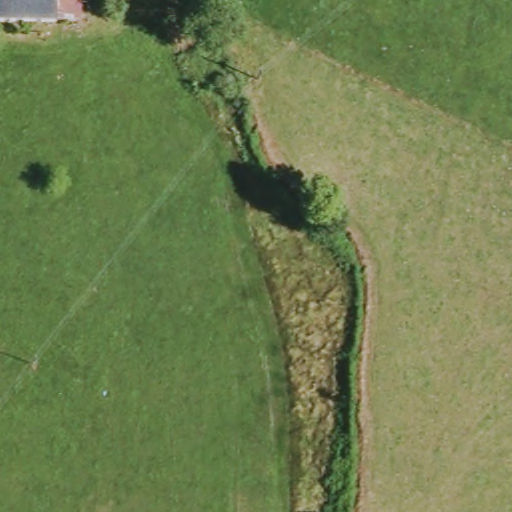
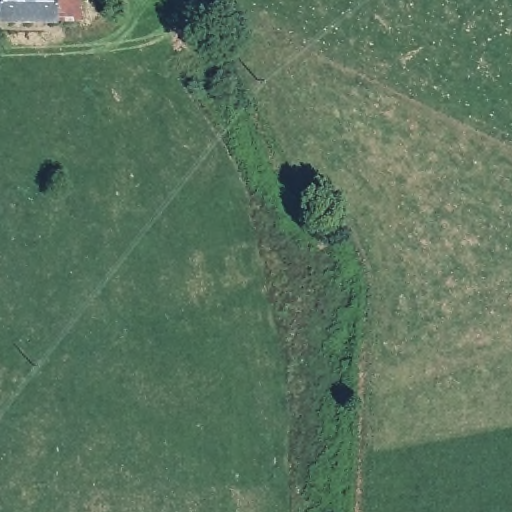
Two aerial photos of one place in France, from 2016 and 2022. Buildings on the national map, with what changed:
unchanged [(56,22),(0,24),(0,0),(75,0),(76,21),(56,22)]

